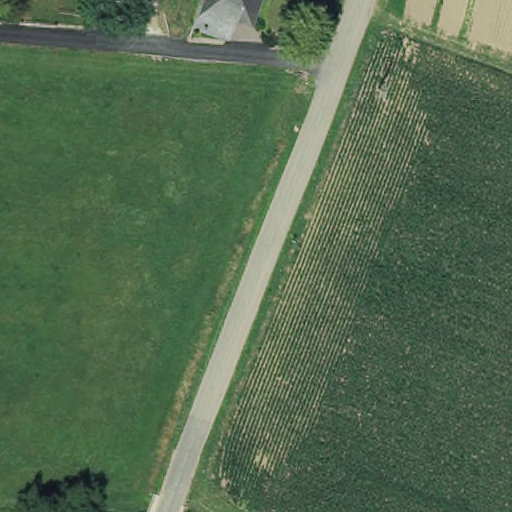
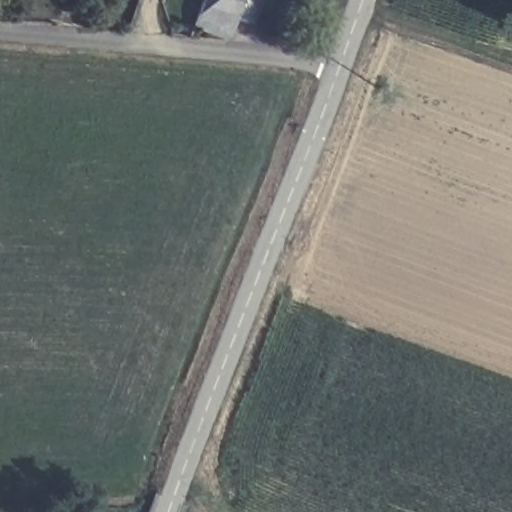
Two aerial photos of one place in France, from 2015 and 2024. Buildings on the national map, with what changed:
unchanged [(198,8),(201,0),(259,0),(248,27),(242,25),(198,8)]

